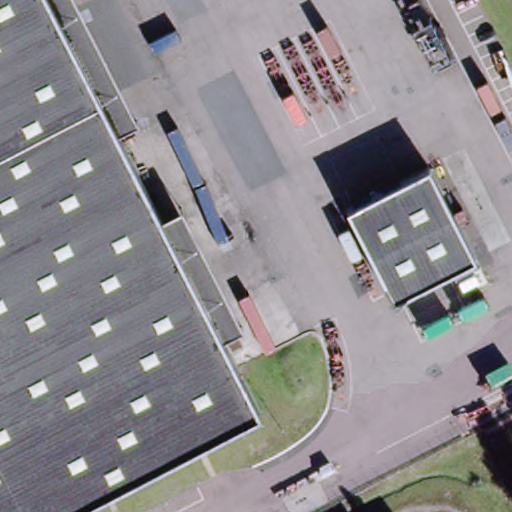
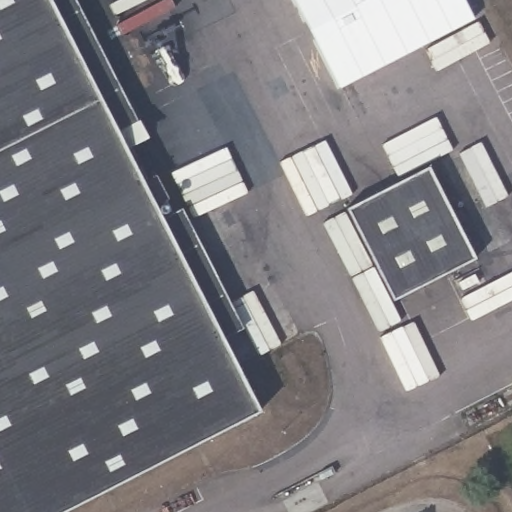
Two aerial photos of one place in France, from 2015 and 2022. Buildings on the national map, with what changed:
unchanged [(166,227),(229,349),(260,411),(63,512),(0,512),(0,0),(50,0),(120,137),(166,227)]
unchanged [(120,137),(50,0),(81,0),(143,121),(120,137)]
new [(342,85),(295,0),(465,0),(474,20),(342,85)]
unchanged [(393,302),(349,210),(433,169),(477,258),(393,302)]
unchanged [(166,227),(190,213),(252,335),(229,349),(166,227)]

